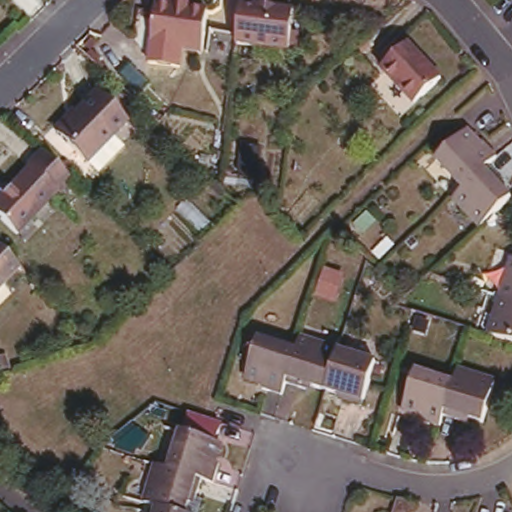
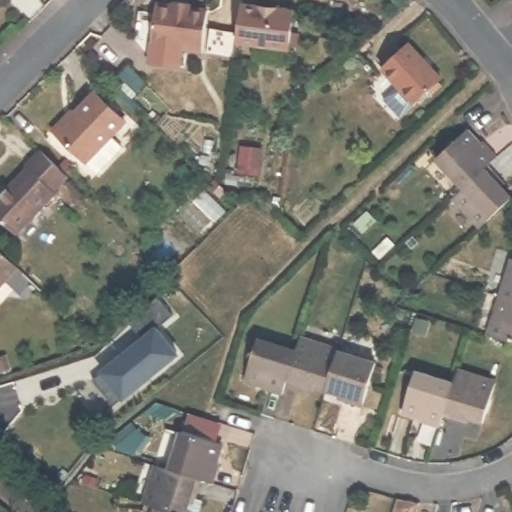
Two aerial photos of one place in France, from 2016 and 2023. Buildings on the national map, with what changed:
unchanged [(187,0),(194,1),(193,6),(212,9),(206,48),(185,46),(186,42),(156,38),(161,1),(179,4),(179,0),(187,0)]
unchanged [(211,50),(215,26),(242,31),(246,2),(298,9),(293,46),(240,41),(239,55),(211,50)]
unchanged [(412,45),(445,80),(419,106),(386,70),(412,45)]
unchanged [(130,118),(90,159),(60,130),(56,126),(75,106),(79,110),(100,88),(130,118)]
unchanged [(466,134),(478,147),(482,144),(496,160),(487,168),(462,191),(435,162),(466,134)]
unchanged [(27,164),(26,162),(41,147),(67,174),(53,187),(55,189),(15,231),(0,216),(0,192),(27,164)]
unchanged [(237,180),(240,159),(241,151),(262,154),(261,161),(258,182),(237,180)]
unchanged [(506,188),(502,191),(511,201),(481,229),(454,199),(462,191),(487,168),(501,183),(506,188)]
unchanged [(23,270),(0,293),(0,247),(23,270)]
unchanged [(512,262),(512,297),(502,295),(512,262)]
unchanged [(502,295),(512,297),(512,340),(489,333),(502,295)]
new [(100,375),(98,371),(140,339),(129,325),(157,298),(172,317),(159,328),(179,354),(113,408),(92,382),(100,375)]
unchanged [(291,380),(287,392),(267,386),(268,382),(250,375),(263,336),(301,348),(291,380)]
unchanged [(291,380),(301,348),(304,336),(342,348),(330,388),(319,385),(318,389),(310,386),(291,380)]
unchanged [(342,391),(330,388),(342,348),(381,360),(367,404),(347,398),(340,396),(342,391)]
unchanged [(424,419),(426,414),(407,409),(420,369),(459,381),(448,413),(444,425),(424,419)]
unchanged [(468,419),(448,413),(459,381),(462,369),(500,381),(487,420),(475,417),(473,421),(468,419)]
unchanged [(181,429),(221,441),(216,460),(219,461),(213,481),(201,477),(168,466),(181,429)]
unchanged [(188,503),(186,512),(179,512),(157,505),(145,501),(157,462),(168,466),(201,477),(195,497),(193,504),(188,503)]
unchanged [(157,505),(179,512),(155,512),(157,505)]

